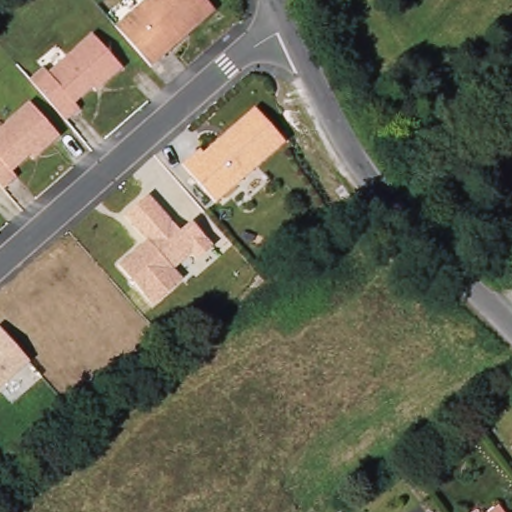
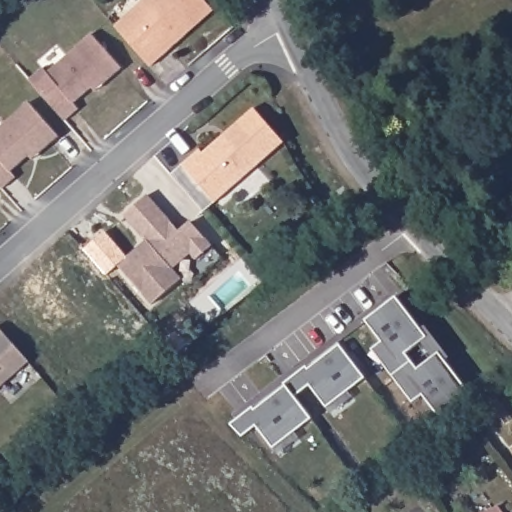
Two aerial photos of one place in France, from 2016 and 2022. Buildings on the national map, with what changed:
unchanged [(150,66),(146,61),(114,26),(144,0),(205,0),(209,5),(214,10),(184,36),(150,66)]
unchanged [(92,87),(73,103),(78,109),(65,120),(65,121),(29,80),(42,68),(47,73),(66,56),(91,34),(121,68),(102,84),(95,91),(92,87)]
unchanged [(29,155),(10,172),(15,177),(2,189),(0,187),(0,128),(3,125),(29,103),(58,136),(39,153),(32,159),(29,155)]
unchanged [(283,142),(214,202),(182,164),(199,149),(202,153),(216,141),(225,133),(253,108),(283,142)]
unchanged [(147,194),(179,232),(191,222),(212,246),(196,260),(190,253),(172,269),(181,279),(152,304),(117,265),(142,244),(146,240),(123,215),(147,194)]
new [(388,367),(373,349),(383,341),(366,320),(397,296),(422,328),(426,324),(451,356),(447,359),(472,391),(442,415),(425,394),(415,402),(401,384),(388,367)]
unchanged [(24,362),(0,382),(0,334),(24,362)]
new [(256,410),(286,386),(284,384),(294,376),(307,366),(308,368),(340,344),(366,377),(327,407),(310,385),(304,389),(295,396),(313,418),(274,449),(257,427),(252,430),(243,437),(231,425),(242,417),(254,408),(256,410)]
unchanged [(471,417),(485,406),(488,404),(496,398),(504,409),(493,417),(479,428),(466,437),(458,427),(471,417)]
unchanged [(499,506),(504,512),(490,512),(499,506)]

